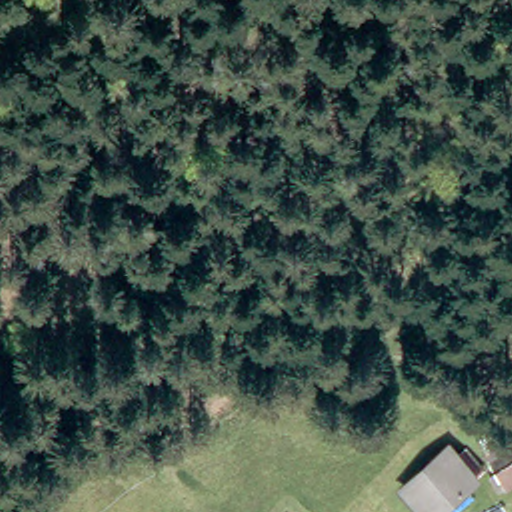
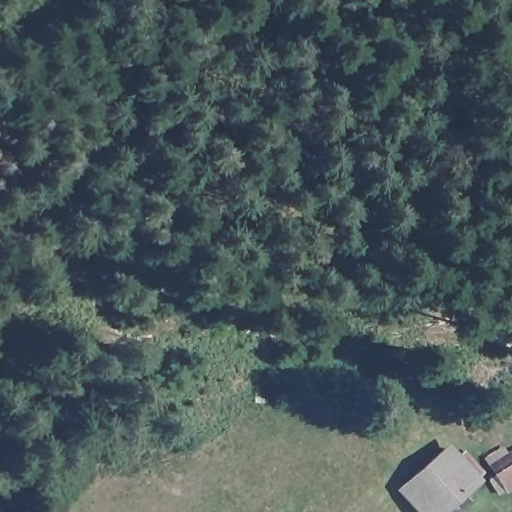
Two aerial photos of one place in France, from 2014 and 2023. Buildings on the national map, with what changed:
unchanged [(512,447),(512,486),(510,487),(490,467),(510,446),(512,447)]
unchanged [(444,512),(420,512),(402,493),(447,450),(476,481),(444,512)]

